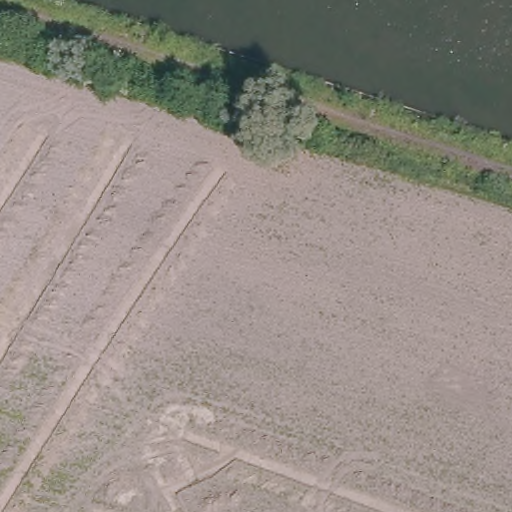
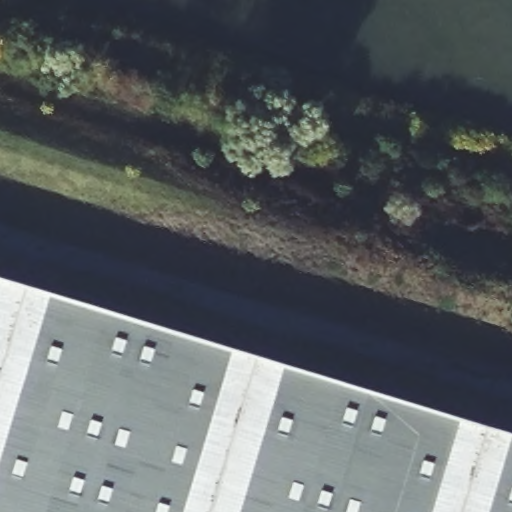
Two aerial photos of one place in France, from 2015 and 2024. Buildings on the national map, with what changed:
new [(512,430),(512,512),(0,512),(0,274),(512,430)]

